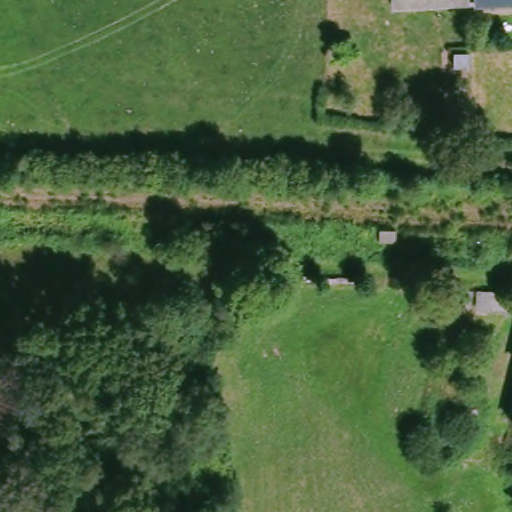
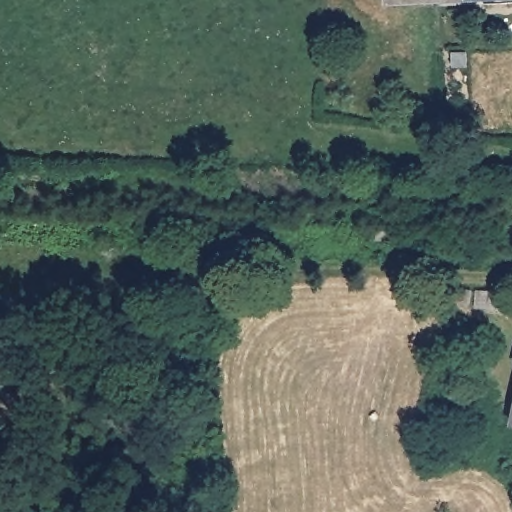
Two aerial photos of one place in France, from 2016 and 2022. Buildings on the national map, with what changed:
unchanged [(389,0),(502,0),(390,6),(389,0)]

